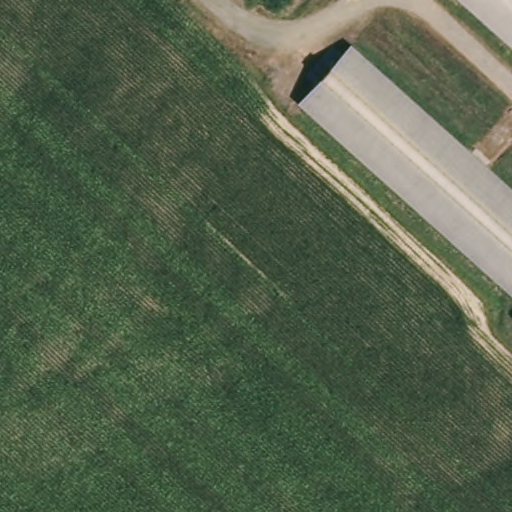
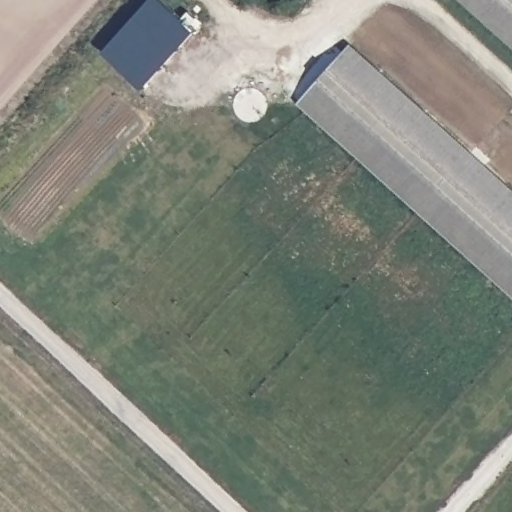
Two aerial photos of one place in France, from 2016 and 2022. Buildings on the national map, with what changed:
new [(104,51),(150,0),(162,0),(199,31),(146,88),(104,51)]
unchanged [(474,0),(512,0),(512,34),(474,0)]
unchanged [(354,48),(512,193),(512,273),(314,92),(354,48)]

